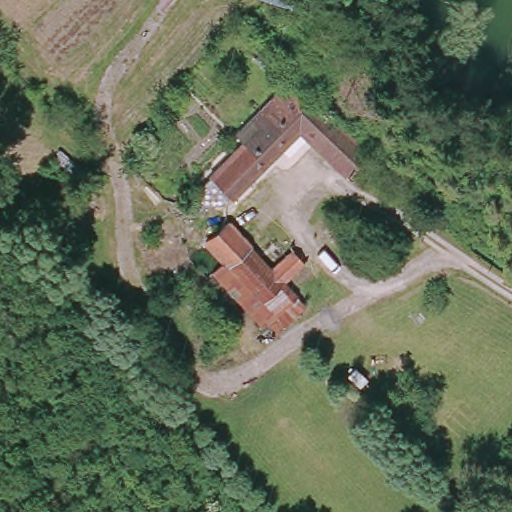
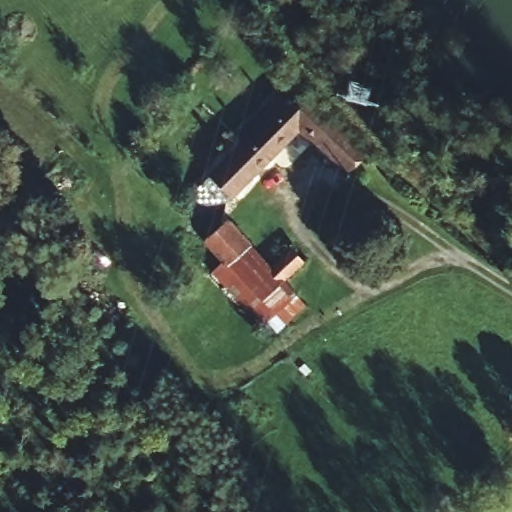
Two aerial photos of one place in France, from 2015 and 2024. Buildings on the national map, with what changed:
unchanged [(291,126),(218,199),(201,180),(294,86),(314,105),(319,101),(363,145),(338,172),(291,126)]
unchanged [(286,325),(281,329),(278,325),(266,314),(241,288),(236,284),(243,278),(204,238),(225,217),(271,264),(289,244),(314,269),(293,289),(308,305),(286,325)]

